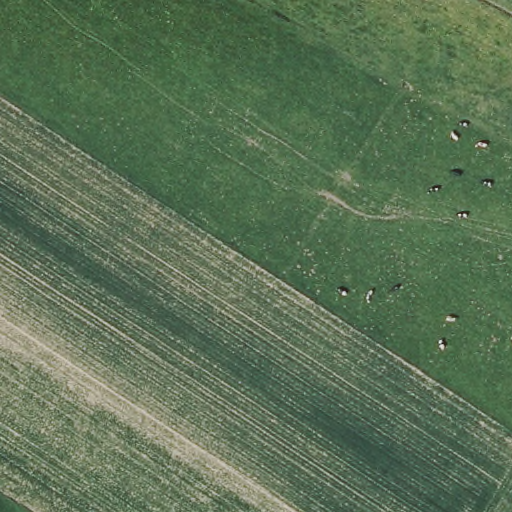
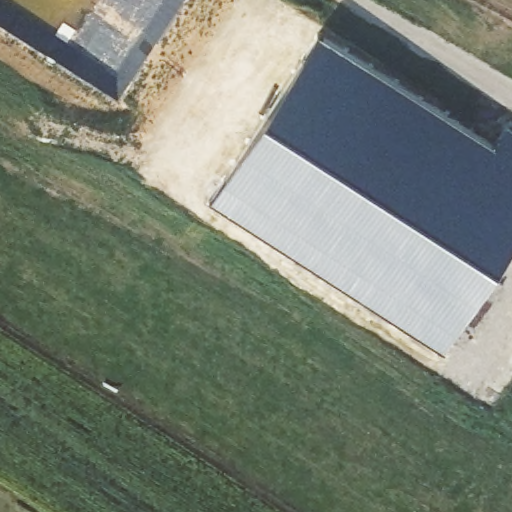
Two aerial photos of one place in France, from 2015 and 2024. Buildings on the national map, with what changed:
new [(494,145),(507,126),(512,129),(512,245),(446,348),(212,196),(320,29),(494,145)]

